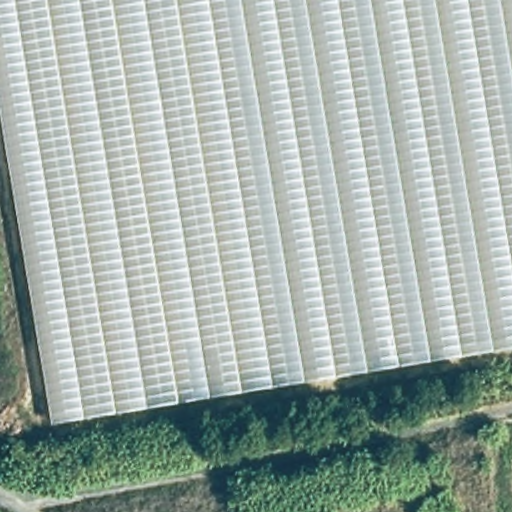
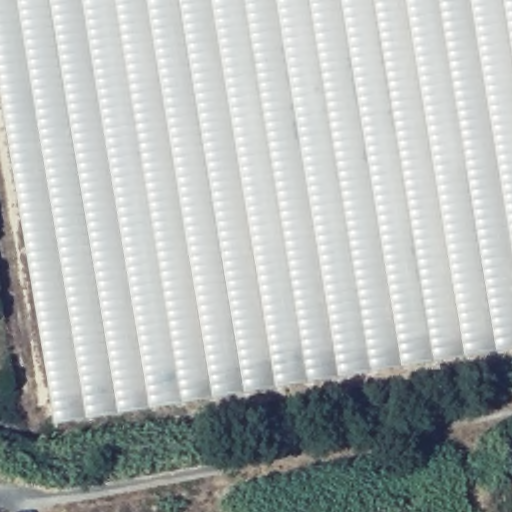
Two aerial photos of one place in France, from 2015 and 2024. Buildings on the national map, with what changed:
unchanged [(139,410),(48,425),(0,137),(0,0),(512,0),(512,351),(139,410)]

